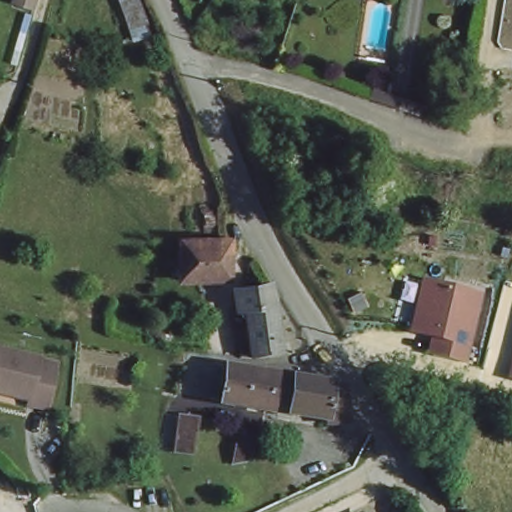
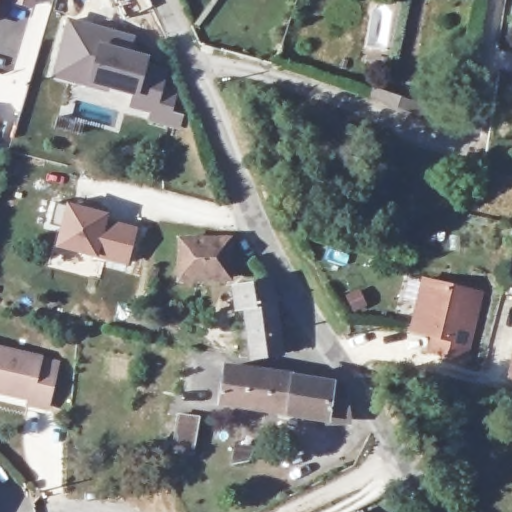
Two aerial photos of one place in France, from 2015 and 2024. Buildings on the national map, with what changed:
unchanged [(33,5),(15,1),(15,0),(34,0),(33,5)]
demolished [(158,33),(135,42),(122,0),(146,0),(158,33)]
new [(46,80),(65,14),(136,32),(130,49),(149,53),(147,61),(168,65),(155,118),(126,111),(129,99),(113,95),(110,98),(46,80)]
new [(110,216),(108,225),(133,231),(126,268),(80,258),(82,253),(54,246),(63,204),(110,216)]
unchanged [(228,281),(202,280),(177,280),(179,239),(203,240),(228,241),(228,281)]
unchanged [(487,291),(470,364),(428,350),(431,337),(413,332),(422,279),(487,291)]
unchanged [(284,355),(252,360),(244,358),(245,346),(252,345),(249,328),(242,330),(239,310),(237,310),(235,291),(269,285),(273,303),(275,303),(284,355)]
unchanged [(4,356),(49,365),(40,405),(1,397),(0,397),(0,355),(4,356)]
unchanged [(512,356),(512,380),(507,379),(512,356)]
unchanged [(221,403),(225,367),(270,375),(263,411),(221,403)]
unchanged [(340,387),(341,390),(344,420),(325,423),(263,411),(270,375),(340,387)]
unchanged [(195,417),(189,456),(167,452),(176,413),(195,417)]
unchanged [(251,452),(246,461),(234,460),(235,450),(251,452)]

